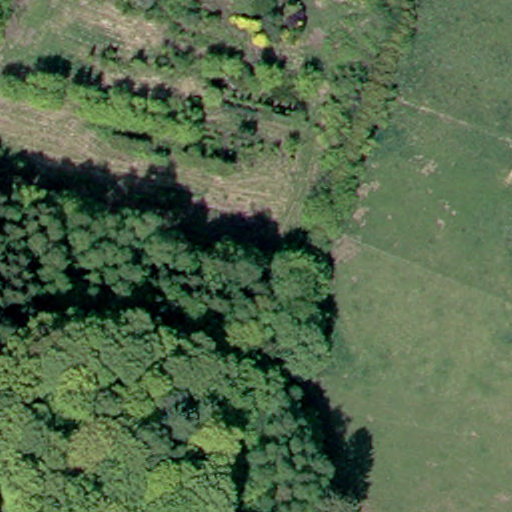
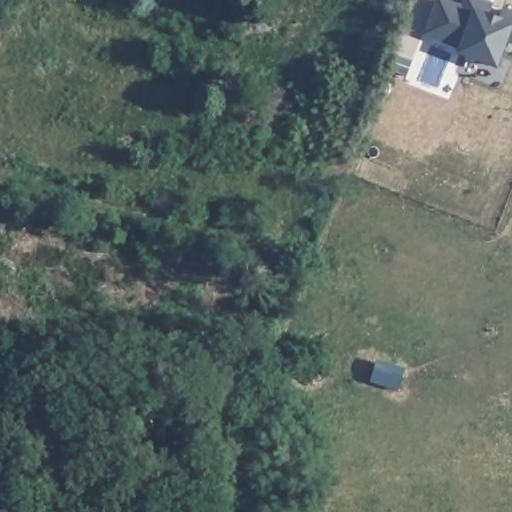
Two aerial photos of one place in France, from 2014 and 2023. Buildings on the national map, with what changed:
new [(464,10),(467,0),(474,0),(493,7),(489,16),(500,20),(503,11),(512,14),(512,42),(507,40),(497,66),(462,53),(463,48),(428,35),(440,1),(464,10)]

